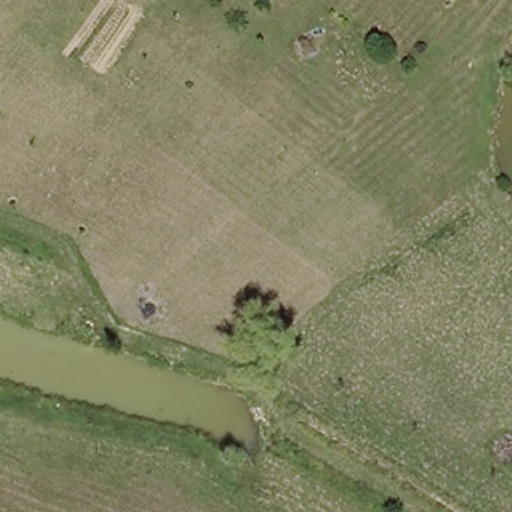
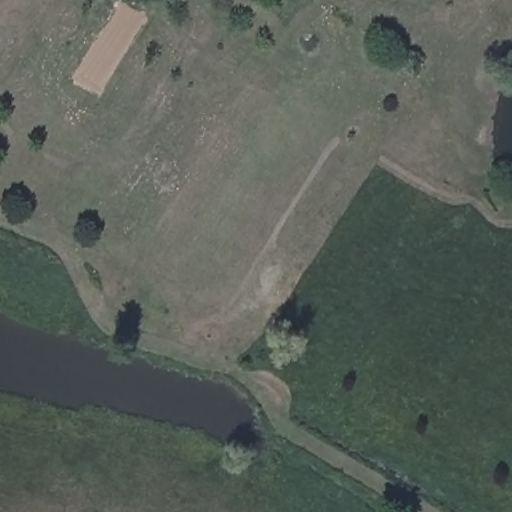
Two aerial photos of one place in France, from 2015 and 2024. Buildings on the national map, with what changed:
[]

